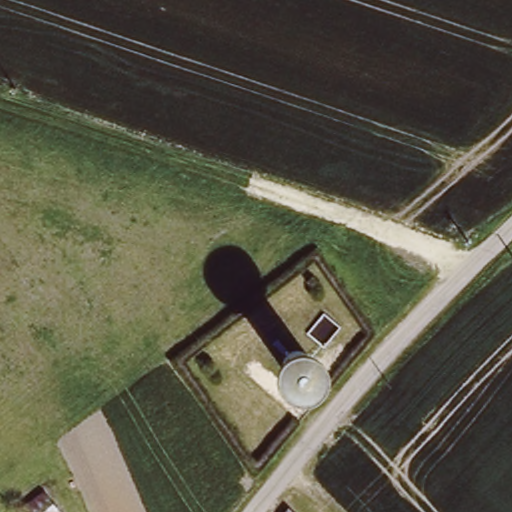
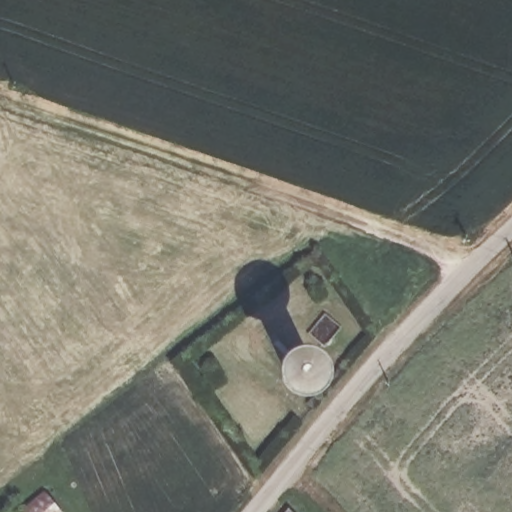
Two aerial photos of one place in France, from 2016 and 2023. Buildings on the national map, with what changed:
unchanged [(55,512),(15,512),(40,492),(55,512)]

